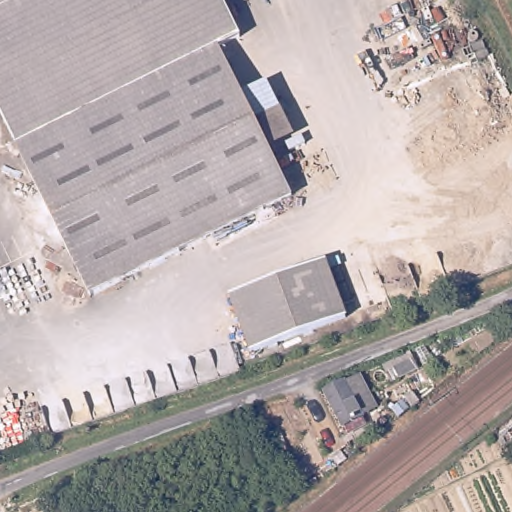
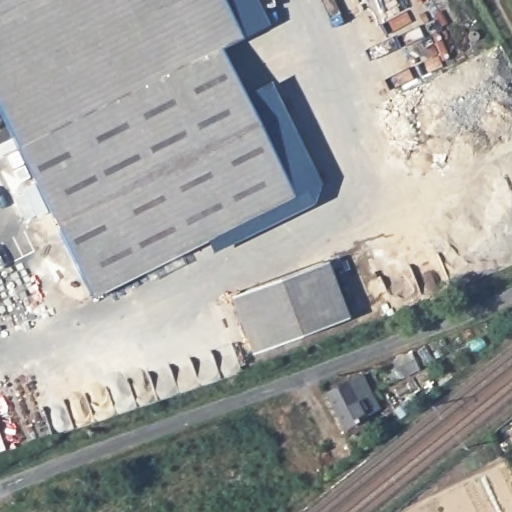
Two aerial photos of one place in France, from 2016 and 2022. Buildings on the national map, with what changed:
unchanged [(0,17),(0,0),(34,0),(0,17)]
unchanged [(34,0),(219,0),(239,39),(217,50),(241,95),(268,151),(291,195),(222,230),(91,296),(82,280),(17,151),(0,116),(0,17),(34,0)]
unchanged [(323,262),(346,319),(253,355),(231,297),(323,262)]
unchanged [(436,342),(438,347),(432,351),(428,345),(436,342)]
unchanged [(417,351),(423,365),(400,377),(392,363),(417,351)]
unchanged [(342,438),(325,405),(343,395),(365,383),(371,396),(349,404),(362,427),(342,438)]
unchanged [(42,496),(50,512),(33,512),(29,503),(42,496)]

